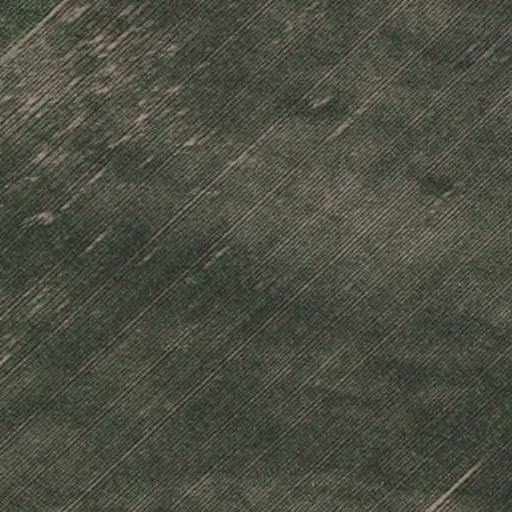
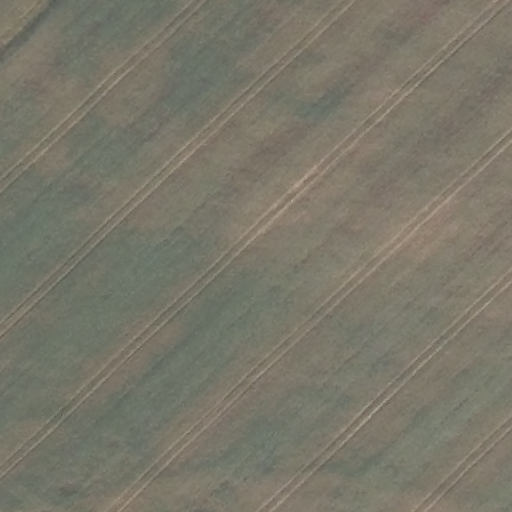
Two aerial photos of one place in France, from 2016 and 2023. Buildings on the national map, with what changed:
[]

